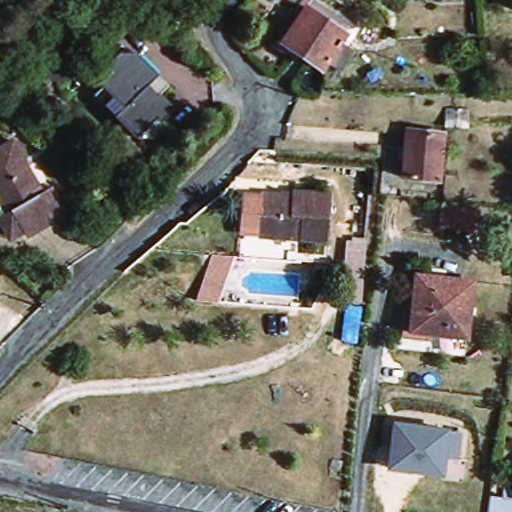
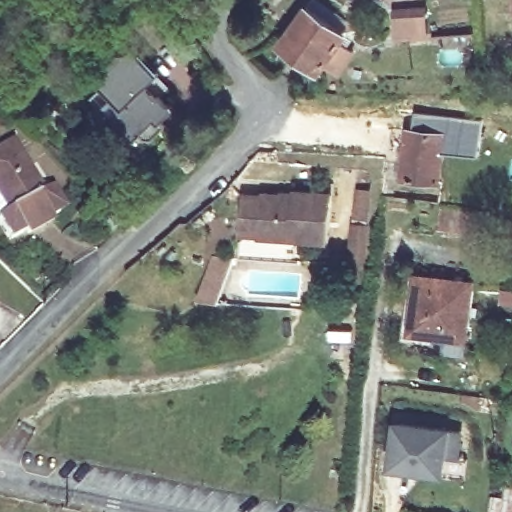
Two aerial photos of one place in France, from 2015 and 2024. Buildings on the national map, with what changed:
unchanged [(346,35),(340,43),(352,52),(339,72),(325,63),(321,70),(282,44),(305,9),(346,35)]
new [(421,16),(423,38),(392,40),(391,18),(421,16)]
unchanged [(108,99),(96,88),(96,79),(104,72),(99,67),(114,53),(132,54),(155,75),(175,96),(167,105),(167,113),(159,121),(162,125),(149,140),(130,140),(109,119),(99,109),(108,99)]
unchanged [(468,117),(466,133),(445,132),(446,117),(468,117)]
unchanged [(443,140),(438,187),(401,183),(405,136),(443,140)]
unchanged [(52,198),(64,216),(62,223),(41,235),(37,228),(22,236),(25,243),(17,248),(10,246),(0,230),(0,226),(7,222),(0,210),(0,158),(14,149),(44,201),(52,198)]
unchanged [(291,197),(291,192),(330,194),(326,242),(256,238),(260,195),(291,197)]
unchanged [(482,209),(478,234),(437,229),(440,204),(482,209)]
unchanged [(362,269),(360,301),(345,300),(346,268),(348,245),(364,246),(362,269)]
unchanged [(216,305),(197,304),(212,258),(215,258),(231,259),(216,305)]
unchanged [(471,283),(465,339),(409,333),(415,277),(471,283)]
unchanged [(394,418),(451,427),(450,432),(464,435),(461,458),(448,457),(445,477),(388,468),(394,418)]
unchanged [(500,488),(512,490),(512,512),(486,512),(488,496),(499,497),(500,488)]

